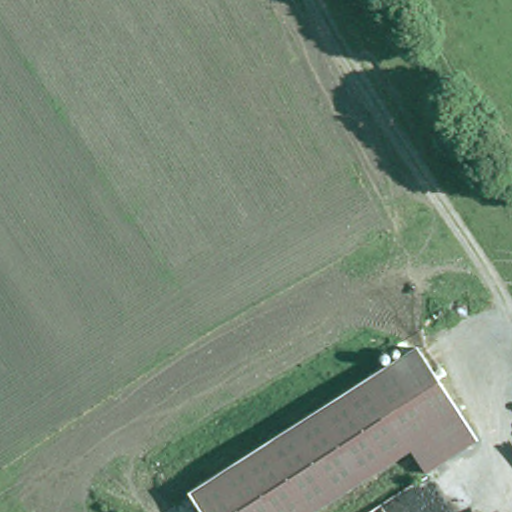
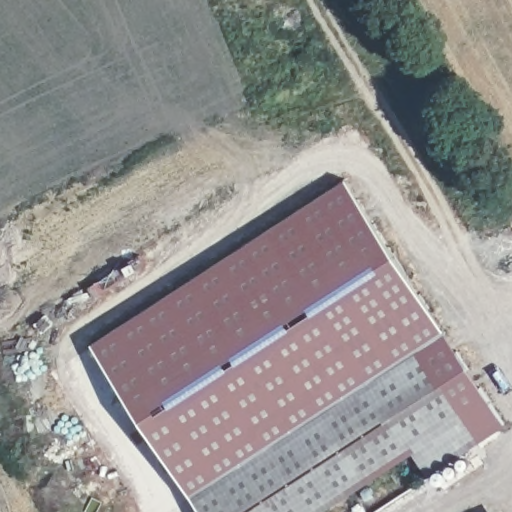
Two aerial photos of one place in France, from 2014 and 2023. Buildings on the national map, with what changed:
new [(418,355),(194,496),(95,342),(346,179),(447,332),(444,334),(508,430),(478,449),(418,355)]
unchanged [(478,449),(426,482),(412,458),(327,512),(197,512),(189,500),(418,355),(478,449)]
unchanged [(503,511),(503,512),(502,512),(503,511)]

